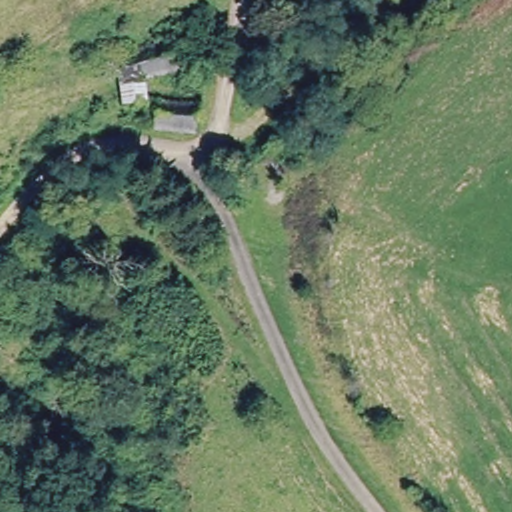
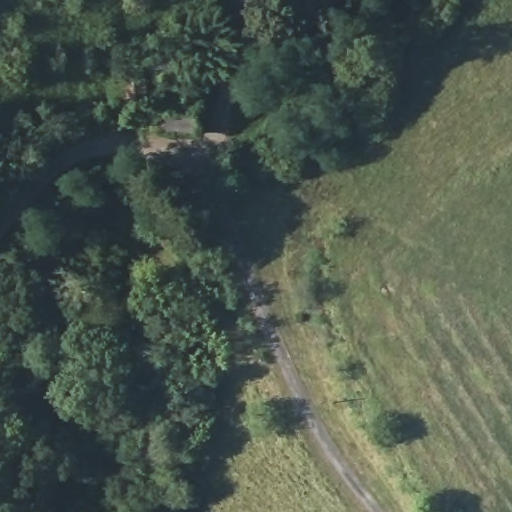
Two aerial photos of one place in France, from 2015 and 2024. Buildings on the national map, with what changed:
unchanged [(139,76),(140,99),(120,98),(113,46),(185,40),(191,70),(139,76)]
unchanged [(152,132),(153,100),(198,105),(194,137),(152,132)]

